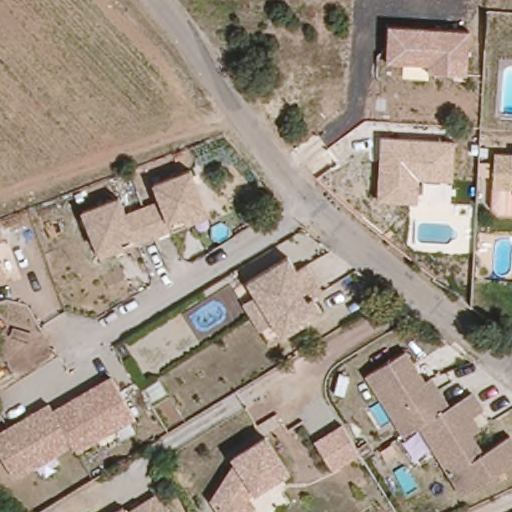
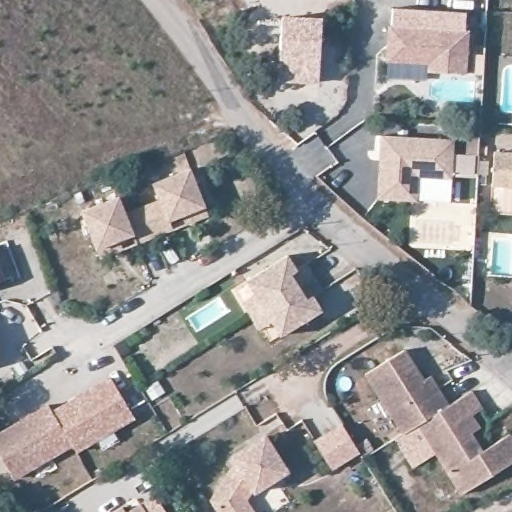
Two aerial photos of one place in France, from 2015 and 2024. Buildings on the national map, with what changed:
new [(317,19),(317,75),(281,75),(280,19),(317,19)]
unchanged [(388,25),(467,30),(466,74),(428,72),(428,64),(385,61),(388,25)]
unchanged [(416,202),(377,200),(382,134),(454,138),(453,153),(479,155),(477,180),(452,179),(452,180),(450,205),(416,202)]
unchanged [(494,146),(512,147),(512,179),(492,179),(494,146)]
unchanged [(171,227),(153,235),(142,205),(160,198),(154,181),(191,167),(205,205),(208,214),(171,227)]
unchanged [(95,245),(81,207),(119,194),(125,210),(142,205),(153,235),(134,241),(98,255),(95,245)]
unchanged [(249,276),(291,251),(298,265),(308,260),(324,287),(314,292),(322,307),(280,331),(272,317),(259,325),(243,297),(257,290),(249,276)]
unchanged [(7,277),(0,281),(0,256),(7,277)]
unchanged [(399,440),(362,377),(407,351),(426,386),(431,382),(447,405),(471,391),(483,406),(471,415),(477,425),(468,432),(480,452),(510,433),(512,438),(512,465),(457,498),(416,430),(399,440)]
unchanged [(0,460),(0,430),(48,404),(52,409),(109,377),(133,424),(74,457),(69,449),(13,482),(0,460)]
unchanged [(332,475),(314,446),(342,429),(360,457),(332,475)]
unchanged [(232,470),(237,464),(234,459),(267,438),(288,473),(255,493),(253,490),(245,502),(249,509),(250,512),(217,512),(211,502),(232,470)]
unchanged [(129,510),(134,507),(143,501),(158,491),(171,512),(113,512),(125,505),(129,510)]

